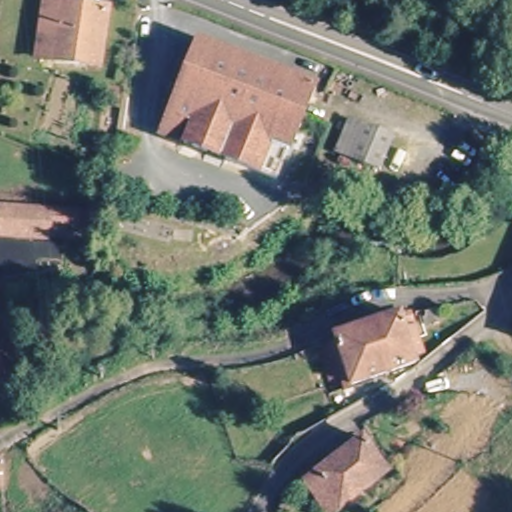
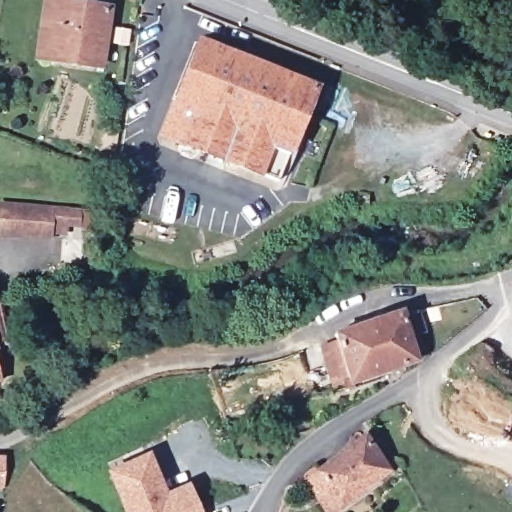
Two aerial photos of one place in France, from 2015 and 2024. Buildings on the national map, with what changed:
unchanged [(102,65),(43,51),(56,1),(114,14),(102,65)]
unchanged [(210,43),(318,94),(276,180),(214,152),(169,132),(187,93),(210,43)]
demolished [(363,129),(351,156),(341,152),(354,125),(363,129)]
unchanged [(53,196),(69,197),(67,219),(52,217),(51,227),(3,225),(7,194),(53,196)]
unchanged [(343,211),(343,198),(356,197),(356,211),(343,211)]
unchanged [(420,306),(424,320),(415,323),(425,353),(338,381),(326,342),(336,340),(336,331),(420,306)]
unchanged [(49,319),(53,333),(27,342),(24,327),(49,319)]
unchanged [(388,476),(345,506),(336,496),(317,507),(290,477),(315,458),(323,468),(367,437),(394,472),(388,476)]
new [(190,482),(202,512),(124,512),(106,472),(150,452),(169,491),(190,482)]
unchanged [(0,488),(0,459),(5,459),(1,487),(0,488)]

